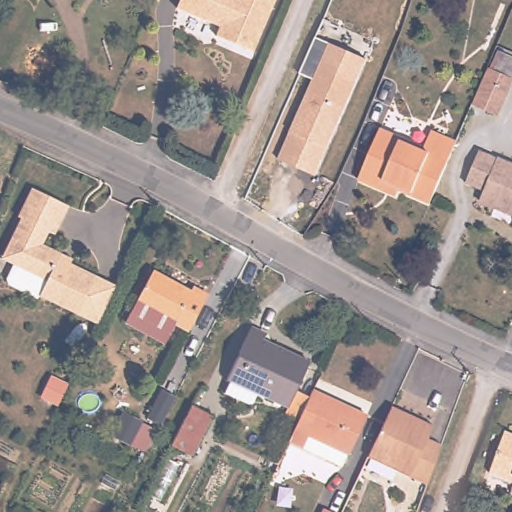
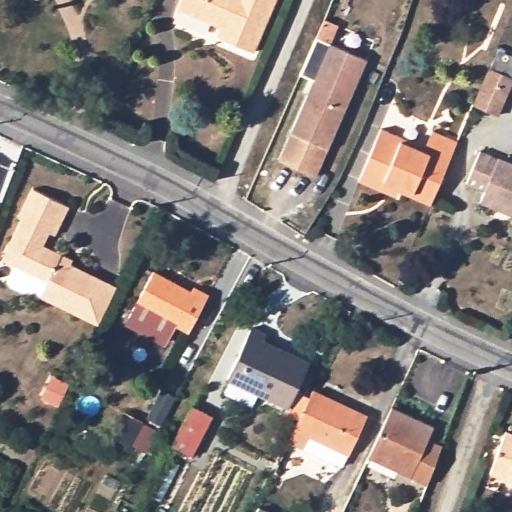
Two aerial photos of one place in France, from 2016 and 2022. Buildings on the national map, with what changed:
unchanged [(274,0),(252,50),(215,33),(218,26),(176,6),(178,0),(274,0)]
unchanged [(367,59),(319,179),(279,162),(313,79),(300,73),(315,36),(367,59)]
unchanged [(512,56),(512,71),(510,76),(512,77),(512,79),(498,114),(472,102),(488,66),(496,49),(512,56)]
unchanged [(377,182),(358,172),(380,122),(423,139),(431,122),(457,134),(429,198),(397,184),(394,190),(377,182)]
unchanged [(512,162),(512,214),(479,200),(483,189),(465,181),(480,149),(512,162)]
unchanged [(104,313),(99,323),(79,313),(40,295),(48,280),(14,263),(3,258),(10,242),(22,218),(19,217),(33,187),(69,205),(55,234),(49,231),(43,244),(62,253),(73,258),(71,263),(97,276),(118,286),(104,313)]
unchanged [(191,288),(193,284),(209,292),(189,331),(174,323),(165,341),(125,320),(152,268),(191,288)]
unchanged [(284,407),(286,402),(256,388),(250,399),(224,387),(229,375),(226,373),(251,321),(265,327),(263,334),(309,356),(295,384),(310,392),(299,415),(284,407)]
unchanged [(69,384),(59,405),(40,395),(50,375),(69,384)]
unchanged [(303,442),(289,437),(299,415),(310,392),(313,384),(366,410),(347,450),(341,461),(303,442)]
unchanged [(149,417),(162,391),(176,397),(162,423),(149,417)]
unchanged [(391,402),(431,421),(426,432),(442,440),(428,479),(368,452),(391,402)]
unchanged [(193,406),(212,416),(192,455),(173,445),(193,406)]
unchanged [(121,409),(158,429),(145,455),(108,437),(121,409)]
unchanged [(507,431),(512,433),(512,481),(491,473),(507,431)]
unchanged [(326,502),(346,510),(345,512),(321,512),(326,502)]

